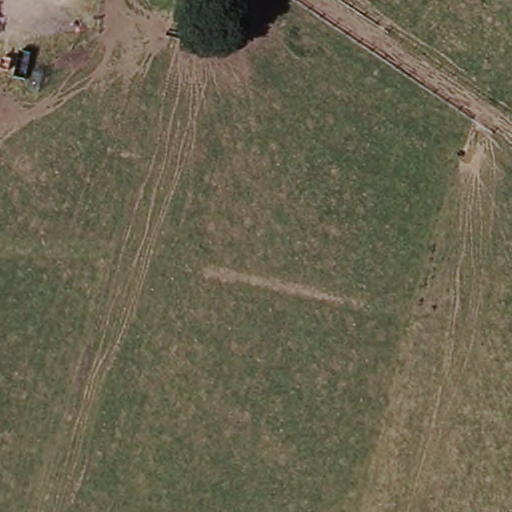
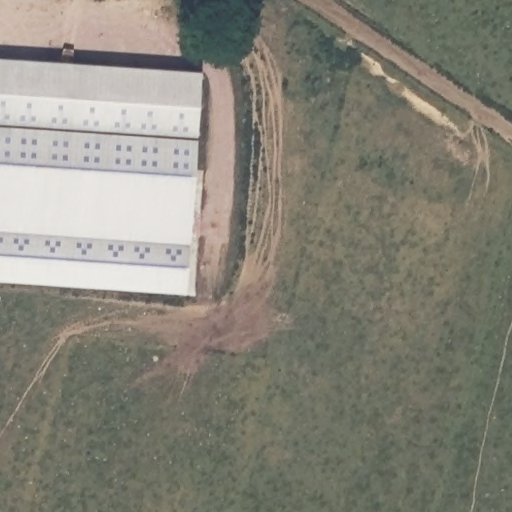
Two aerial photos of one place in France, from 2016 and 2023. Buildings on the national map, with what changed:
new [(197,75),(193,141),(0,130),(0,63),(197,75)]
new [(193,141),(183,292),(0,281),(0,130),(193,141)]

